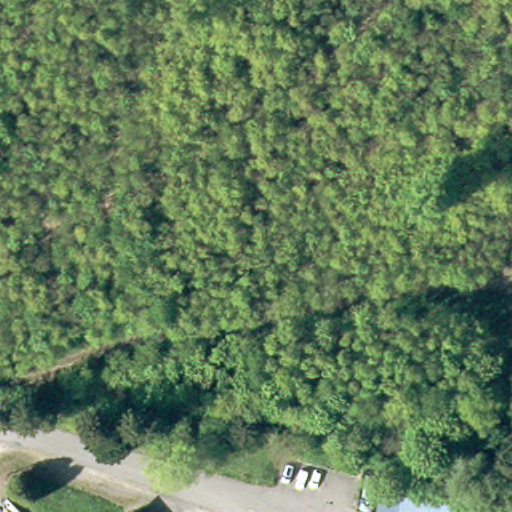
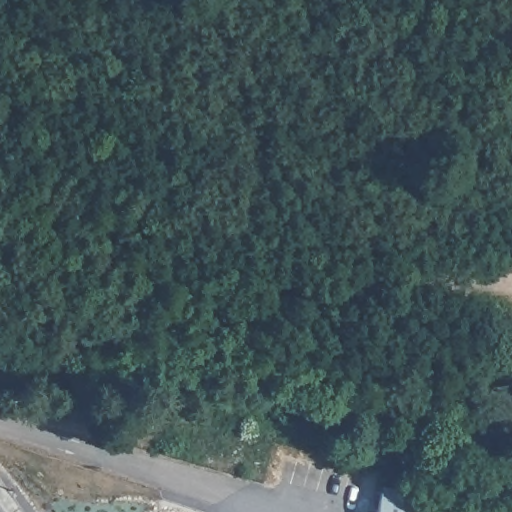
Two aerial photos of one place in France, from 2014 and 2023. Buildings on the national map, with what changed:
unchanged [(512,512),(383,512),(387,488),(512,511),(512,512)]
unchanged [(163,494),(179,512),(136,512),(156,493),(163,494)]

